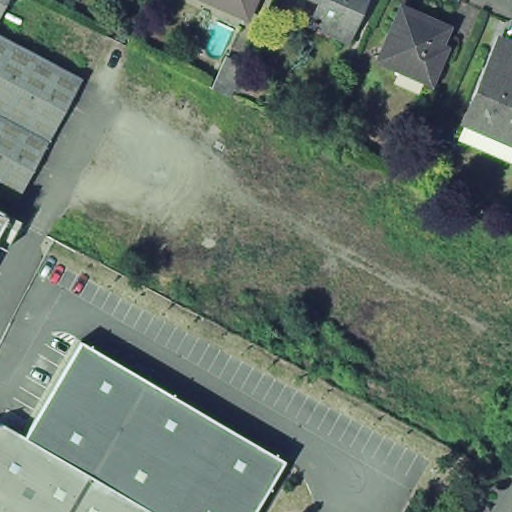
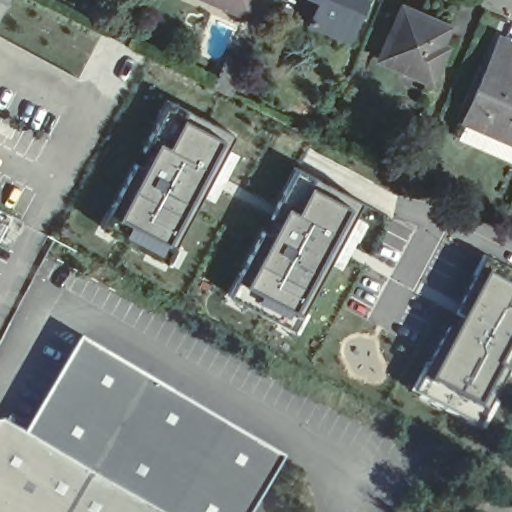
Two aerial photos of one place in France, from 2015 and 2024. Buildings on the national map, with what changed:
unchanged [(0,2),(0,0),(1,0),(0,2)]
unchanged [(198,3),(191,0),(200,0),(198,3)]
unchanged [(245,15),(210,0),(251,0),(245,15)]
unchanged [(347,40),(310,25),(319,2),(316,0),(363,0),(347,40)]
unchanged [(438,27),(426,54),(433,57),(421,83),(368,60),(390,6),(438,27)]
unchanged [(504,56),(499,85),(512,91),(512,150),(509,156),(454,132),(489,49),(504,56)]
unchanged [(243,64),(229,96),(213,88),(226,57),(243,64)]
new [(236,136),(166,263),(102,228),(168,100),(236,136)]
new [(363,206),(292,333),(228,298),(295,170),(363,206)]
new [(512,278),(512,370),(481,427),(417,391),(484,263),(512,278)]
unchanged [(74,345),(76,341),(103,357),(159,390),(241,437),(279,460),(261,491),(249,512),(149,512),(19,436),(55,376),(74,345)]
unchanged [(149,512),(0,512),(0,425),(19,436),(149,512)]

